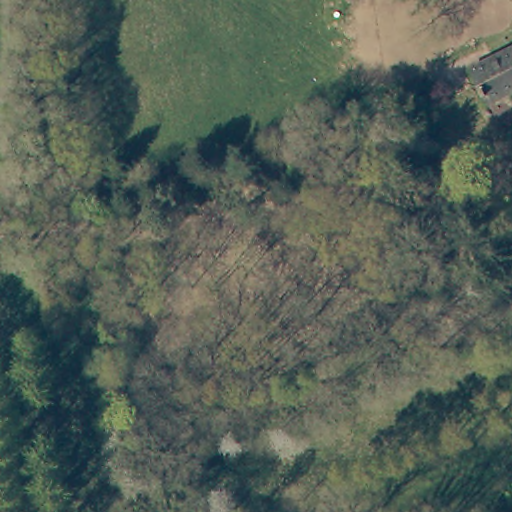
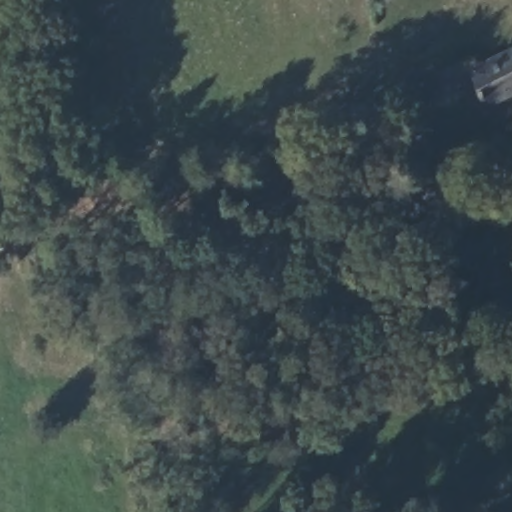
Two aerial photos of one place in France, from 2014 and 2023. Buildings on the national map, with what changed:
unchanged [(512,47),(512,95),(492,105),(473,67),(512,47)]

